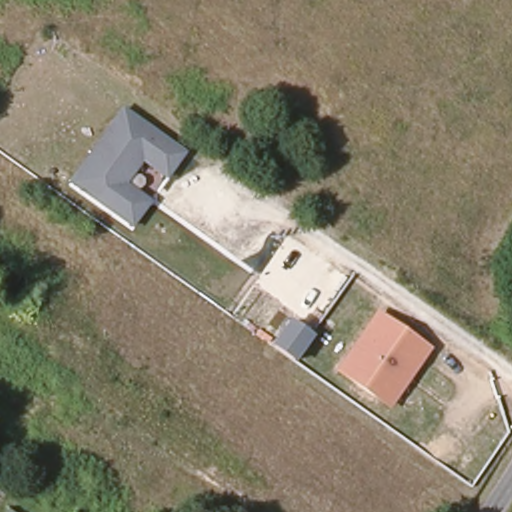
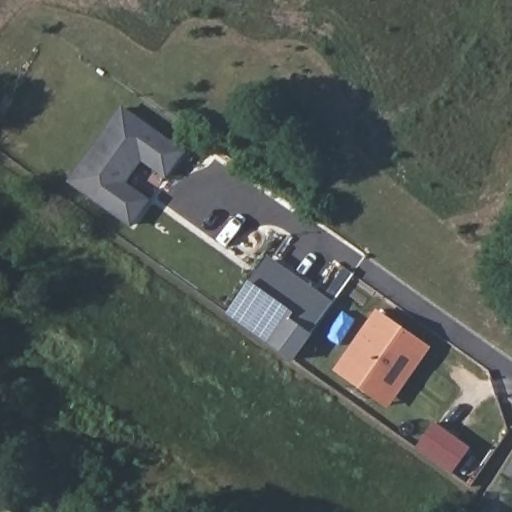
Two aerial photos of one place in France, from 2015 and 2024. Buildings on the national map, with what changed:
unchanged [(126,184),(151,200),(132,230),(67,183),(121,106),(185,152),(166,179),(141,164),(126,184)]
new [(228,313),(269,255),(334,303),(312,335),(287,317),(269,344),(228,313)]
unchanged [(430,349),(388,409),(335,371),(376,311),(430,349)]
unchanged [(297,363),(269,344),(287,317),(314,337),(297,363)]

